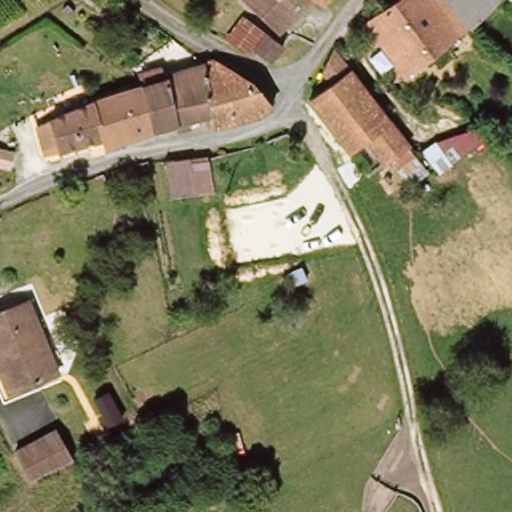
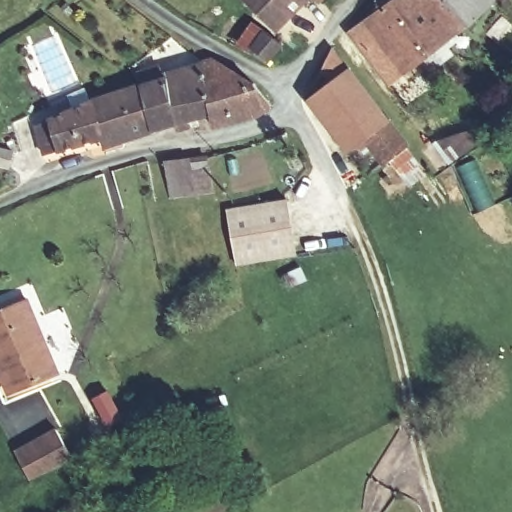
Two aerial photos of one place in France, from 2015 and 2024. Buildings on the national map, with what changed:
unchanged [(251,0),(320,0),(290,33),(251,0)]
unchanged [(328,0),(335,0),(332,4),(328,0)]
unchanged [(400,0),(465,0),(482,20),(388,86),(352,34),(400,0)]
unchanged [(482,20),(465,0),(500,0),(489,11),(482,20)]
unchanged [(298,42),(284,61),(265,48),(260,51),(237,38),(250,15),(298,42)]
unchanged [(316,88),(335,74),(327,65),(338,42),(416,136),(414,138),(426,152),(410,164),(397,149),(392,153),(374,129),(355,140),(315,91),(316,88)]
unchanged [(271,85),(285,103),(256,114),(227,121),(225,113),(215,60),(225,58),(271,85)]
unchanged [(148,86),(176,78),(175,73),(215,60),(225,113),(191,120),(175,123),(158,126),(148,86)]
unchanged [(115,128),(61,155),(45,126),(109,99),(148,86),(158,126),(119,135),(115,128)]
new [(192,159),(192,164),(211,161),(216,193),(172,199),(167,163),(192,159)]
new [(287,199),(295,254),(236,263),(228,209),(287,199)]
unchanged [(0,314),(20,304),(28,299),(61,370),(53,375),(16,394),(0,356),(0,314)]
unchanged [(96,400),(111,393),(125,422),(111,427),(96,400)]
unchanged [(42,481),(26,452),(66,431),(81,459),(42,481)]

